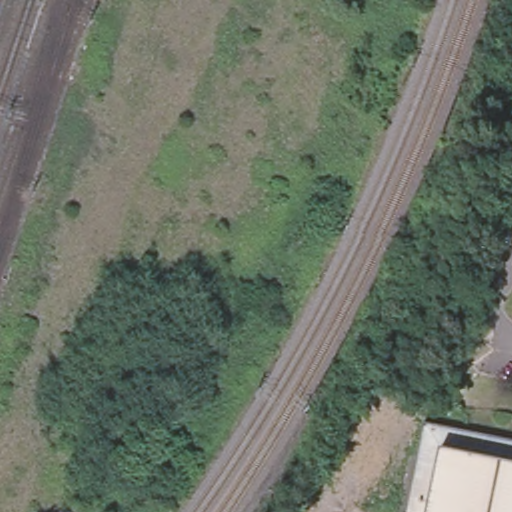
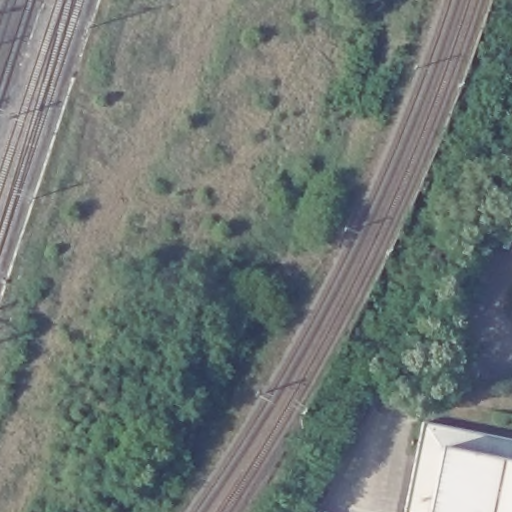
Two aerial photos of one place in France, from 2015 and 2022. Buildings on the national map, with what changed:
unchanged [(512,443),(512,512),(407,512),(425,425),(512,443)]

